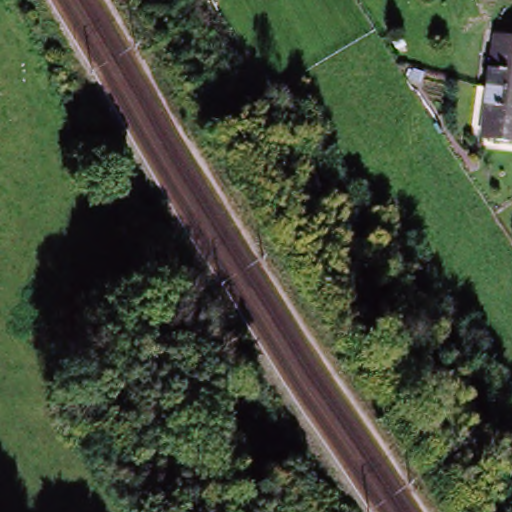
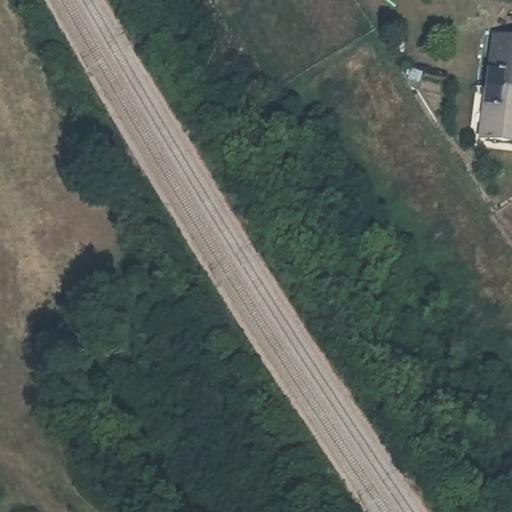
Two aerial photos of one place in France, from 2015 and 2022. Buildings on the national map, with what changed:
unchanged [(512,37),(512,93),(490,89),(487,89),(497,35),(512,37)]
unchanged [(478,140),(487,89),(490,89),(512,93),(512,146),(478,140)]

